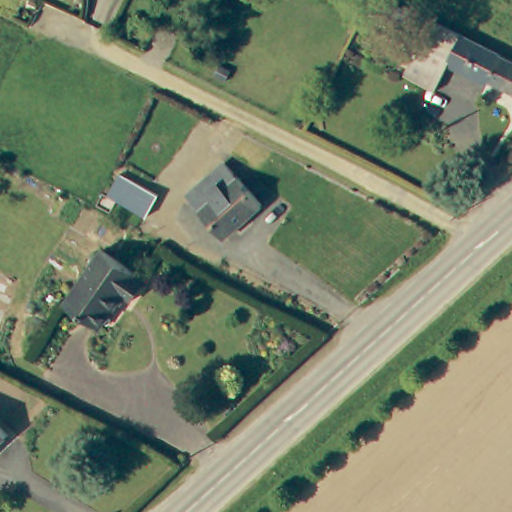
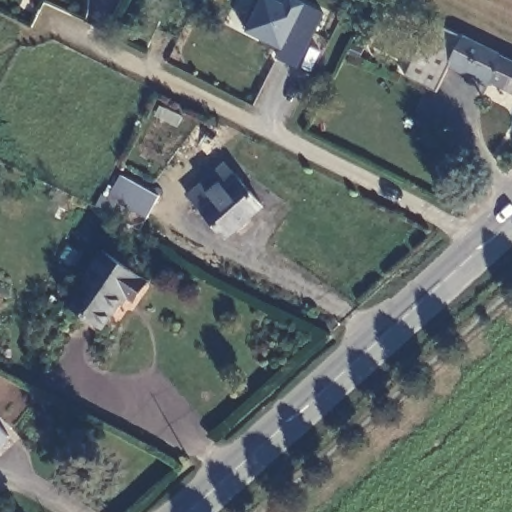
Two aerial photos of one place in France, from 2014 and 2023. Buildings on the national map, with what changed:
new [(282,47),(245,30),(260,0),(280,0),(285,2),(286,0),(300,0),(327,12),(299,68),(277,56),(282,47)]
unchanged [(487,82),(449,63),(435,90),(430,87),(404,73),(432,18),(452,29),(512,59),(512,90),(489,79),(487,82)]
unchanged [(215,227),(177,186),(213,154),(251,195),(215,227)]
unchanged [(145,221),(113,205),(107,202),(118,179),(124,182),(157,199),(145,221)]
unchanged [(67,307),(104,255),(146,285),(132,303),(125,297),(100,332),(67,307)]
unchanged [(7,436),(0,441),(0,428),(7,436)]

